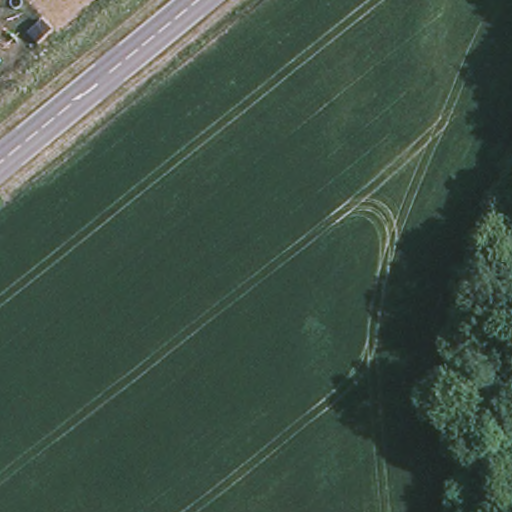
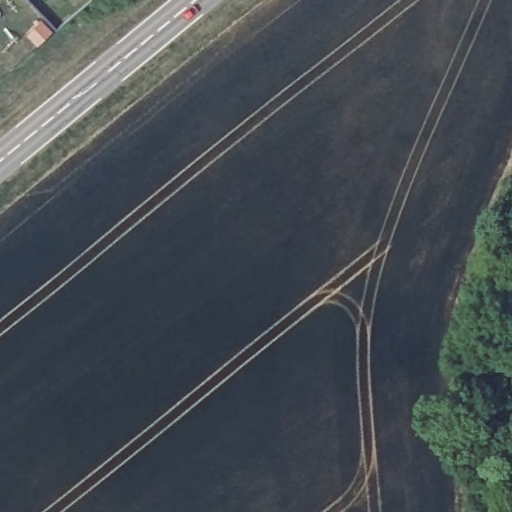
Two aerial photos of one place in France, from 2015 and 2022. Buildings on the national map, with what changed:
[]

